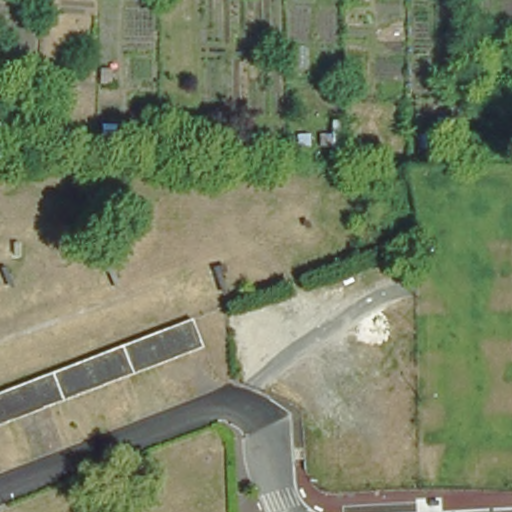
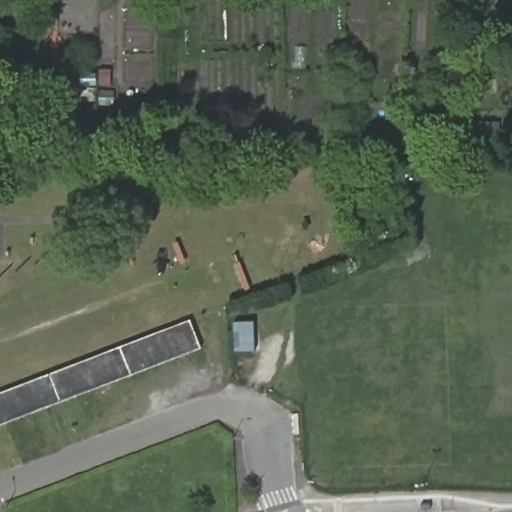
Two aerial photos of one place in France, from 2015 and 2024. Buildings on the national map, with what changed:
unchanged [(236,156),(201,155),(201,142),(222,142),(223,141),(236,143),(236,156)]
unchanged [(187,159),(166,159),(167,143),(187,143),(187,159)]
unchanged [(7,383),(21,378),(34,373),(48,368),(62,363),(77,357),(91,352),(106,347),(120,341),(134,336),(147,331),(161,326),(176,321),(189,316),(200,345),(186,350),(172,355),(158,361),(144,366),(130,371),(117,376),(102,382),(87,387),(72,393),(59,398),(45,403),(31,408),(17,413),(3,419),(0,420),(0,386),(7,383)]

